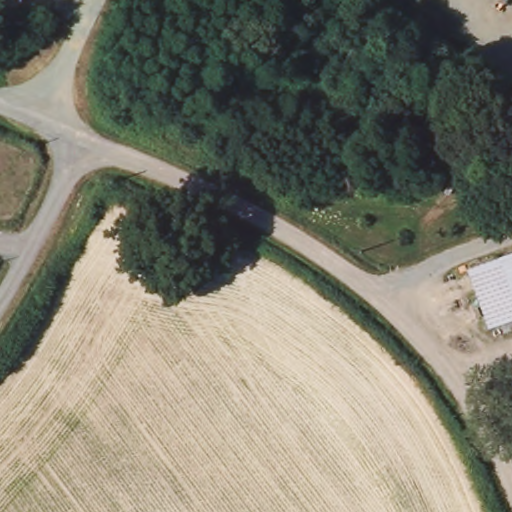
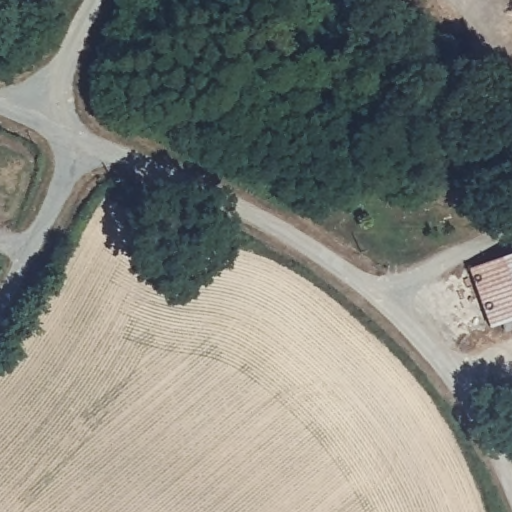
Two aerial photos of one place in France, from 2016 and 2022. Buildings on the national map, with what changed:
unchanged [(512,253),(512,322),(486,332),(463,271),(512,253)]

